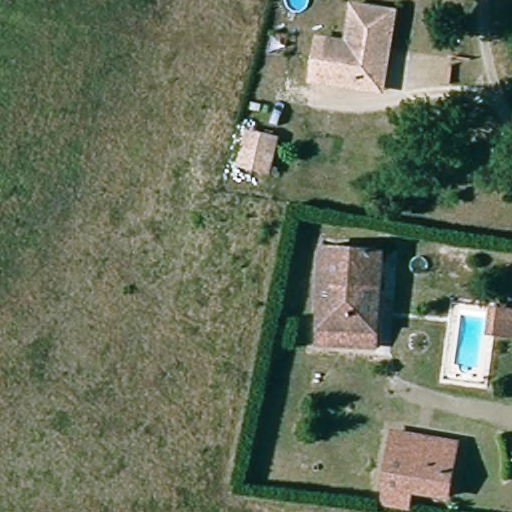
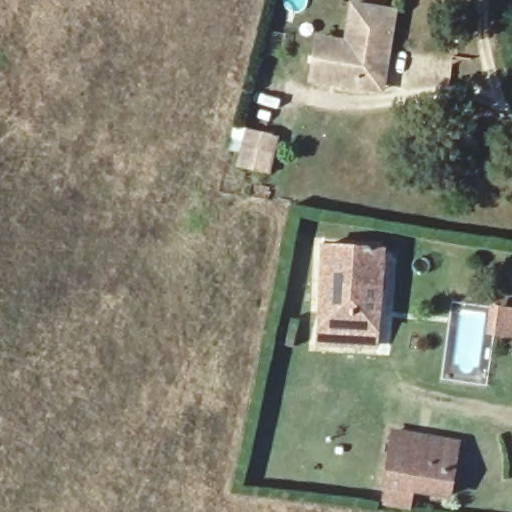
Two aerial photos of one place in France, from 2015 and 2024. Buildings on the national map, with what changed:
unchanged [(314,72),(318,48),(321,31),(349,35),(354,0),(378,0),(397,3),(391,44),(388,62),(385,83),(362,79),(344,77),(314,72)]
unchanged [(279,168),(243,160),(253,116),(289,125),(279,168)]
unchanged [(378,343),(321,337),(330,241),(388,247),(378,343)]
unchanged [(493,330),(497,293),(512,294),(512,330),(493,330)]
unchanged [(404,422),(465,436),(459,461),(399,447),(404,422)]
unchanged [(459,461),(453,488),(416,480),(413,496),(390,491),(394,474),(392,474),(399,447),(459,461)]

